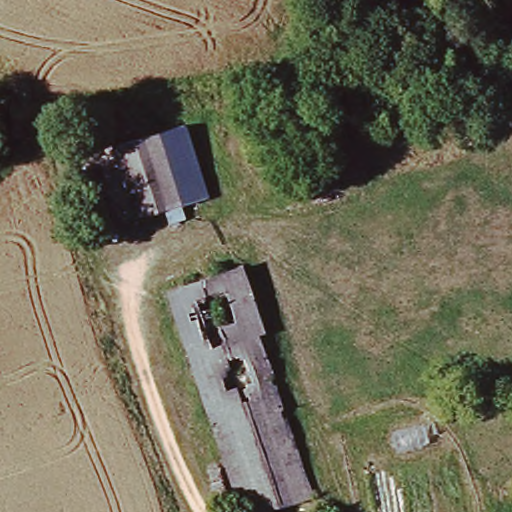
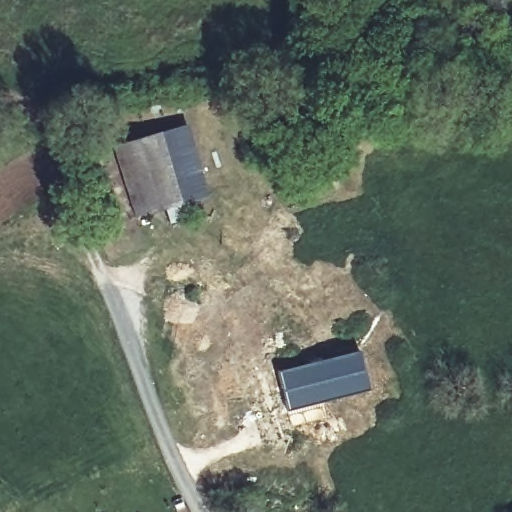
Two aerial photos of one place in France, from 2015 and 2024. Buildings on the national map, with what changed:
unchanged [(217,195),(144,220),(124,146),(195,125),(217,195)]
demolished [(275,336),(266,337),(322,500),(278,512),(246,512),(176,292),(252,267),(275,336)]
new [(360,350),(369,390),(287,410),(277,370),(360,350)]

